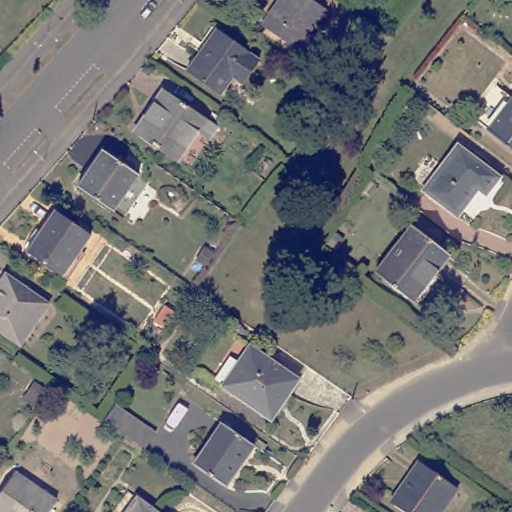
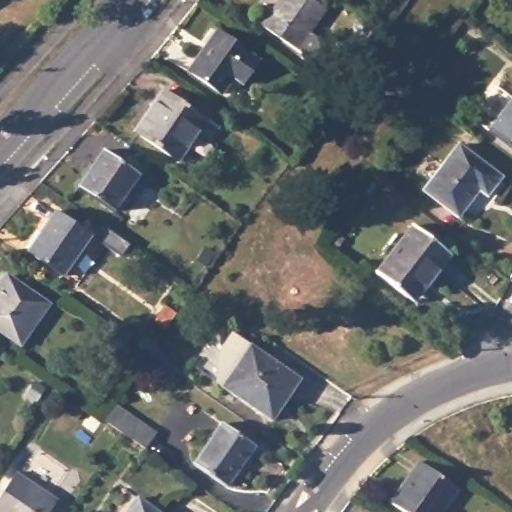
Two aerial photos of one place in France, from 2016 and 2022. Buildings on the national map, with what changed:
unchanged [(309,32),(307,35),(309,37),(312,34),(324,42),(311,60),(262,26),(279,0),(312,0),(325,9),(309,32)]
unchanged [(242,85),(233,78),(220,95),(187,71),(205,45),(215,30),(218,32),(259,61),(242,85)]
unchanged [(209,139),(198,132),(178,162),(133,132),(162,90),(218,128),(209,139)]
unchanged [(487,130),(512,97),(512,149),(487,130)]
unchanged [(487,197),(478,190),(458,217),(422,191),(458,144),(501,177),(487,197)]
unchanged [(113,213),(76,188),(103,149),(139,174),(113,213)]
unchanged [(62,277),(26,253),(54,210),(91,235),(62,277)]
unchanged [(374,273),(411,225),(451,255),(434,276),(413,304),(407,299),(374,273)]
unchanged [(0,333),(0,286),(8,275),(49,304),(19,346),(0,333)]
unchanged [(154,322),(164,306),(175,314),(164,329),(154,322)]
unchanged [(271,421),(221,387),(249,345),(299,380),(271,421)]
unchanged [(48,397),(54,387),(67,396),(61,405),(48,397)]
unchanged [(116,402),(160,431),(149,451),(104,421),(116,402)]
unchanged [(225,487),(193,465),(222,423),(254,445),(225,487)]
unchanged [(441,512),(404,512),(392,504),(390,502),(408,476),(419,461),(458,489),(441,512)]
unchanged [(0,512),(0,493),(14,472),(56,501),(49,512),(0,512)]
unchanged [(155,512),(126,512),(136,498),(155,512)]

